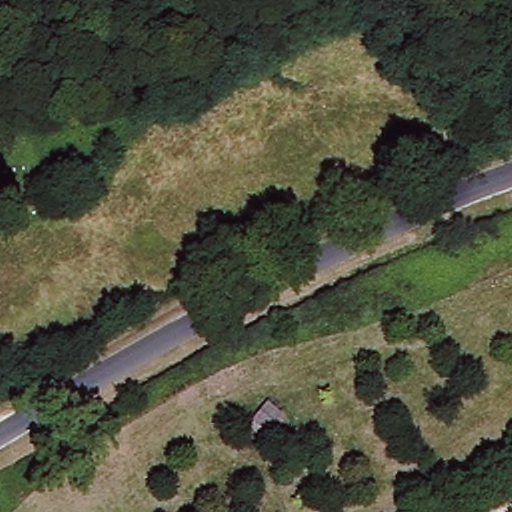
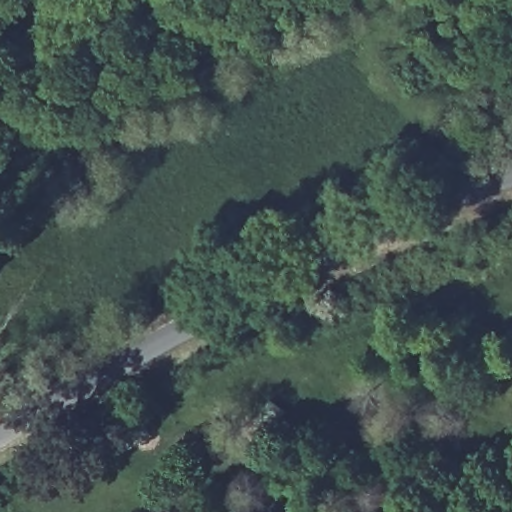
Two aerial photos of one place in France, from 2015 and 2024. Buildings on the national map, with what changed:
[]

